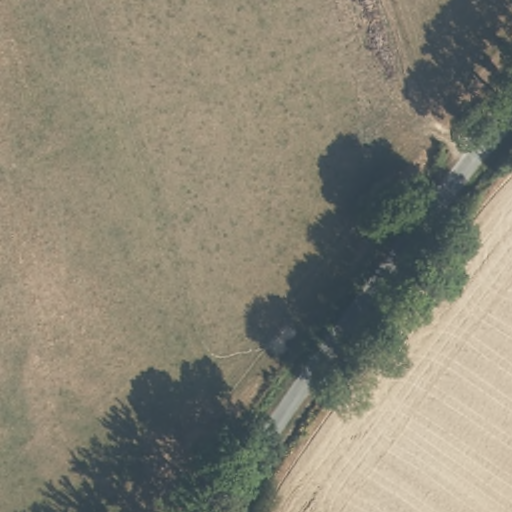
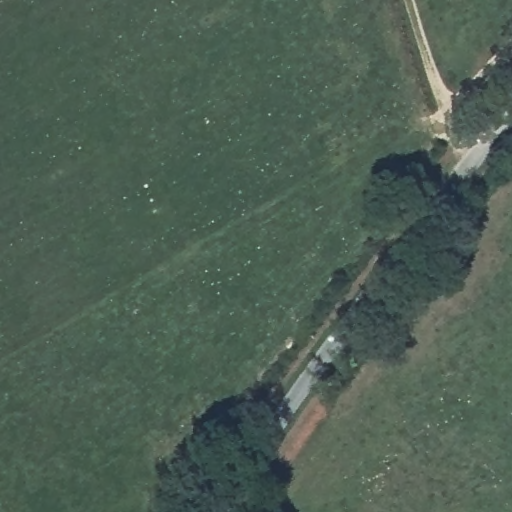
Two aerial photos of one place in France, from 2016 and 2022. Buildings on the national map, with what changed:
[]

